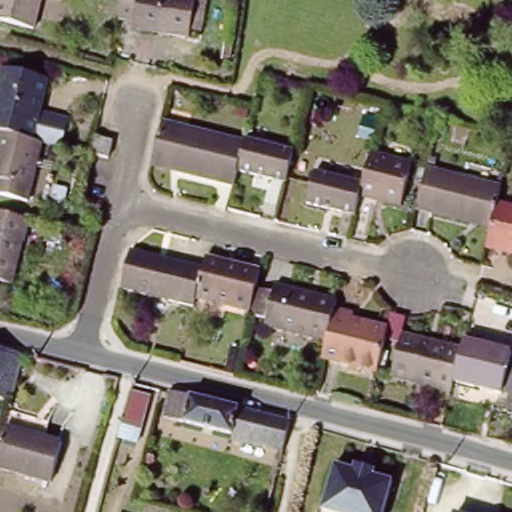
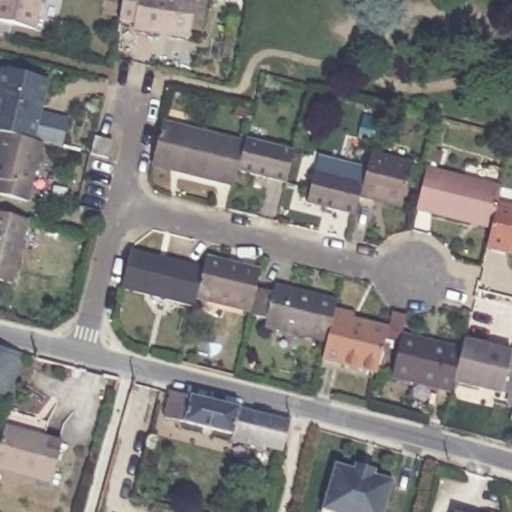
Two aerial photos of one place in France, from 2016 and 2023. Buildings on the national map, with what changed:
unchanged [(0,24),(0,5),(1,0),(44,0),(36,33),(0,24)]
unchanged [(190,29),(189,38),(137,30),(136,24),(119,21),(122,0),(207,0),(206,28),(190,29)]
unchanged [(0,135),(0,76),(1,73),(47,84),(41,108),(39,114),(39,116),(66,124),(60,150),(40,145),(16,139),(0,135)]
unchanged [(242,159),(238,178),(234,192),(152,172),(162,129),(244,150),(242,159)]
unchanged [(27,198),(0,191),(0,135),(16,139),(40,145),(27,198)]
unchanged [(99,140),(113,144),(109,158),(96,155),(99,140)]
unchanged [(245,145),(293,155),(286,188),(238,178),(242,159),(244,150),(245,145)]
unchanged [(362,189),(369,159),(410,169),(401,209),(360,200),(362,189)]
unchanged [(415,215),(426,173),(500,190),(496,206),(489,233),(415,215)]
unchanged [(360,200),(355,221),(307,210),(314,178),(362,189),(360,200)]
unchanged [(489,233),(496,206),(512,210),(512,255),(508,254),(486,249),(487,242),(489,233)]
unchanged [(8,221),(27,226),(11,290),(0,288),(0,219),(8,221)]
unchanged [(198,299),(195,312),(124,294),(133,254),(205,272),(198,299)]
unchanged [(207,260),(262,274),(258,290),(253,313),(198,299),(205,272),(207,260)]
unchanged [(328,344),(267,329),(269,323),(252,318),(253,313),(258,290),(275,294),(276,289),(338,303),(335,313),(328,344)]
unchanged [(355,317),(354,322),(384,329),(377,360),(374,374),(324,361),(328,344),(335,313),(355,317)]
unchanged [(452,395),(392,382),(402,339),(462,352),(457,371),(454,387),(452,395)]
unchanged [(457,371),(462,352),(463,347),(512,359),(501,399),(454,387),(457,371)]
unchanged [(24,358),(12,405),(0,402),(0,352),(24,358)]
unchanged [(138,441),(130,438),(112,501),(101,498),(133,390),(152,397),(138,441)]
unchanged [(293,424),(285,451),(234,439),(233,437),(166,422),(173,394),(293,424)]
unchanged [(2,436),(17,440),(36,446),(38,440),(61,447),(49,487),(0,473),(0,440),(2,436)]
unchanged [(355,464),(377,469),(375,475),(394,481),(384,512),(330,512),(321,509),(336,464),(354,469),(355,464)]

